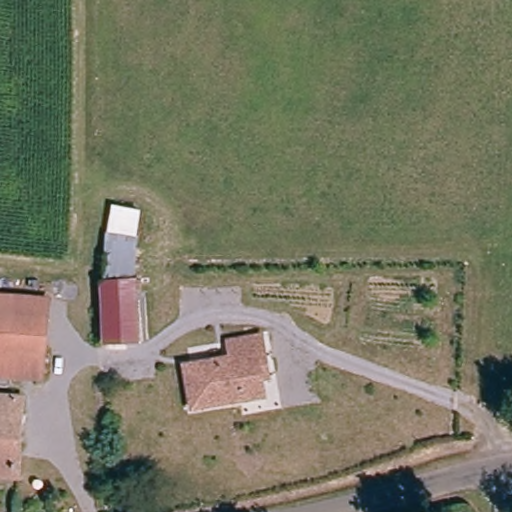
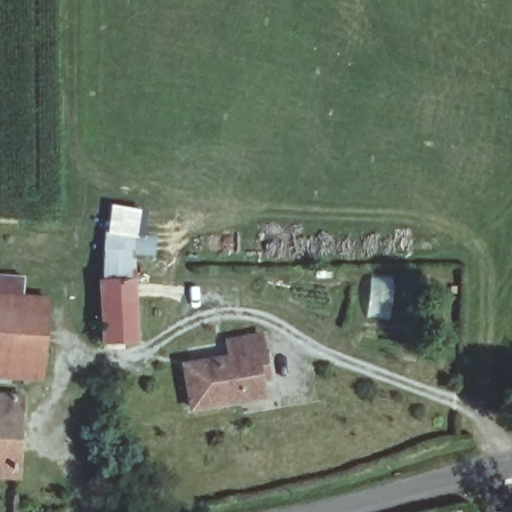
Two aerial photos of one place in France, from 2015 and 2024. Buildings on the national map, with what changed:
unchanged [(137,268),(134,352),(101,352),(103,292),(106,292),(107,267),(137,268)]
unchanged [(0,293),(53,301),(51,311),(40,381),(0,375),(0,293)]
unchanged [(192,409),(186,366),(232,359),(230,343),(263,338),(266,355),(270,379),(262,381),(265,398),(192,409)]
unchanged [(17,483),(0,481),(0,396),(27,400),(17,483)]

